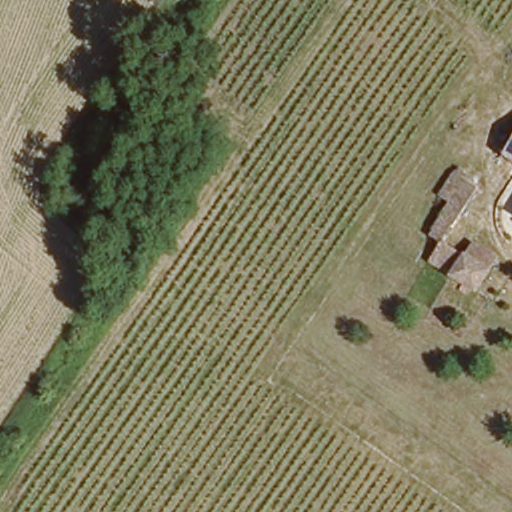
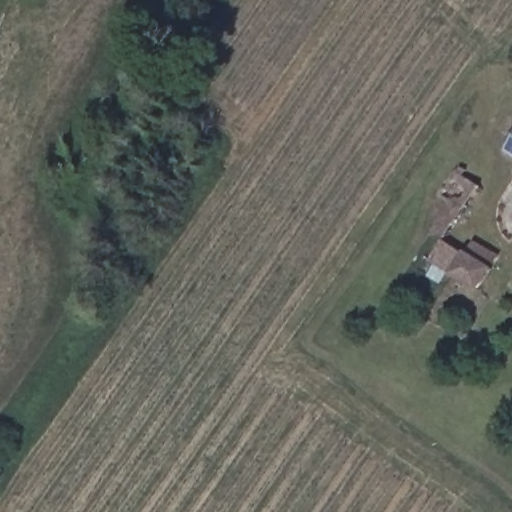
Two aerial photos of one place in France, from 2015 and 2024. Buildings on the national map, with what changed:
unchanged [(512,128),(512,141),(506,137),(512,128)]
unchanged [(512,142),(512,151),(508,149),(512,142)]
unchanged [(496,259),(488,270),(473,291),(427,261),(439,246),(426,237),(443,212),(434,205),(440,196),(455,174),(478,189),(462,212),(443,240),(467,256),(476,245),(496,259)]

